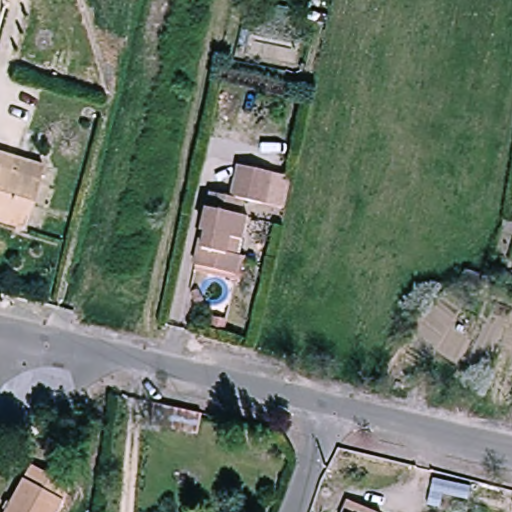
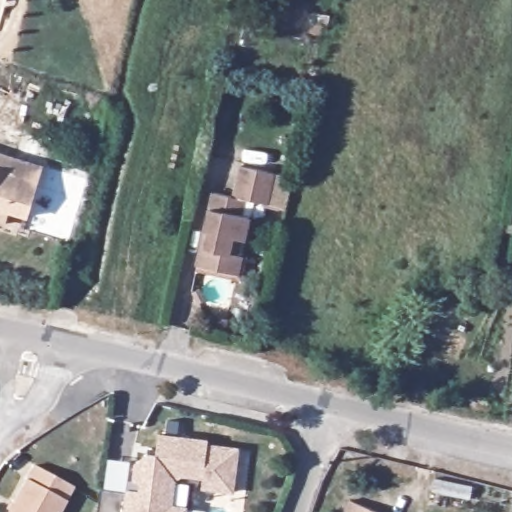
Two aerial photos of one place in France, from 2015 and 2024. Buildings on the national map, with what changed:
unchanged [(0,212),(0,151),(43,161),(33,206),(30,220),(0,212)]
unchanged [(220,191),(230,194),(241,196),(249,166),(281,174),(296,177),(289,210),(273,207),(251,202),(248,215),(256,216),(251,240),(243,237),(240,250),(249,252),(245,272),(215,265),(204,262),(220,191)]
demolished [(209,416),(205,437),(159,426),(165,405),(209,416)]
new [(127,493),(128,490),(130,480),(132,481),(135,461),(149,454),(156,455),(160,434),(209,440),(209,443),(240,447),(235,493),(202,490),(204,478),(184,476),(177,481),(174,505),(189,507),(188,512),(99,512),(102,490),(127,493)]
unchanged [(37,463),(86,490),(74,512),(9,512),(37,463)]
unchanged [(366,500),(388,512),(359,512),(366,500)]

